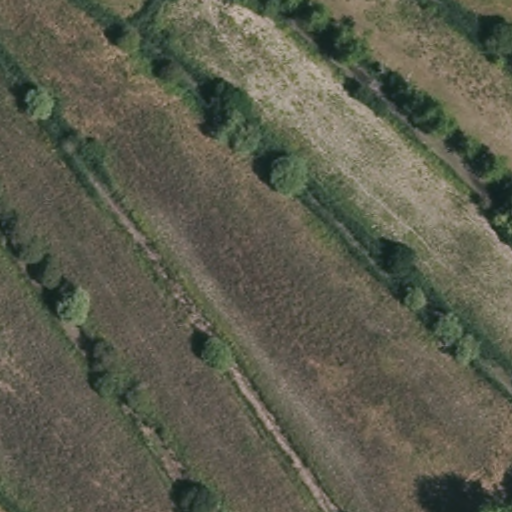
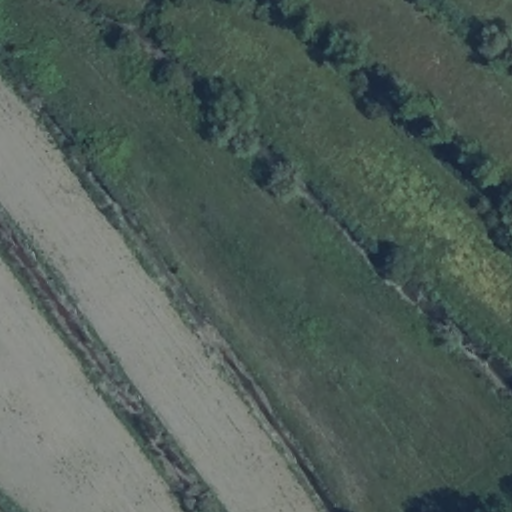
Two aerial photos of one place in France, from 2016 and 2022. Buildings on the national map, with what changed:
[]

